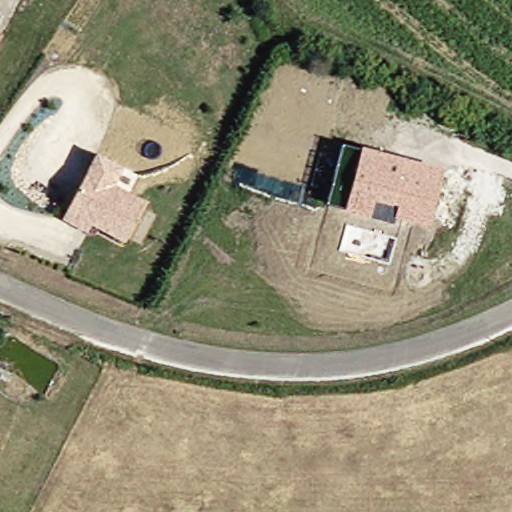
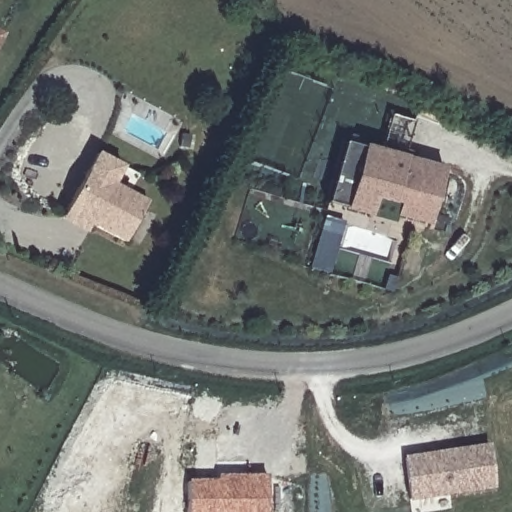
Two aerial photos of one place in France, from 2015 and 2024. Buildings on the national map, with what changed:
unchanged [(395,226),(397,216),(373,210),(368,227),(325,215),(328,202),(310,197),(318,165),(337,170),(340,156),(442,183),(428,235),(395,226)]
unchanged [(60,217),(62,211),(81,170),(142,197),(123,238),(88,222),(85,229),(60,217)]
new [(492,446),(498,487),(416,500),(410,460),(492,446)]
new [(217,480),(217,475),(267,476),(267,512),(189,512),(187,480),(217,480)]

